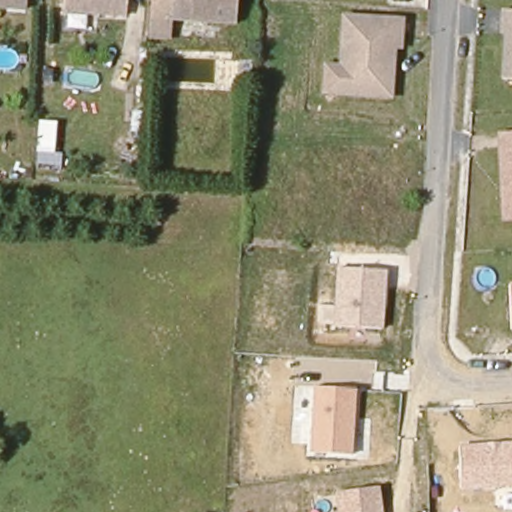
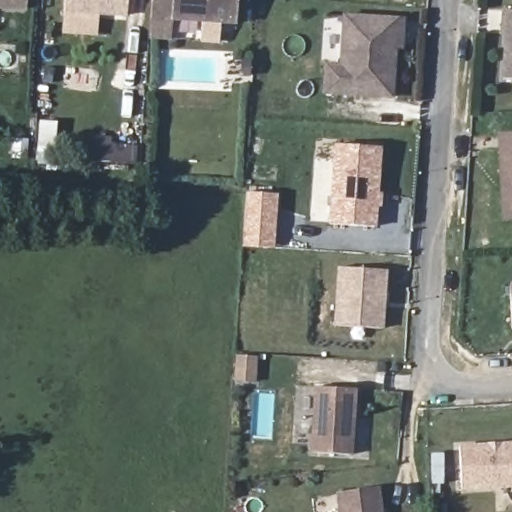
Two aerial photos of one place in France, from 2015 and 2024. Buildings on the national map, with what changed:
unchanged [(0,3),(0,0),(25,0),(25,5),(0,3)]
unchanged [(61,8),(62,0),(125,0),(124,14),(61,8)]
unchanged [(170,17),(170,35),(147,35),(149,0),(234,0),(234,19),(170,17)]
unchanged [(505,29),(501,28),(502,22),(503,5),(512,6),(512,75),(503,75),(505,29)]
unchanged [(322,89),(324,61),(339,61),(341,11),(400,15),(399,31),(398,42),(392,42),(390,92),(322,89)]
unchanged [(512,218),(507,219),(502,133),(512,132),(512,218)]
new [(377,227),(328,224),(333,144),(383,147),(377,227)]
new [(246,192),(278,195),(275,249),(243,246),(246,192)]
unchanged [(383,329),(336,327),(340,266),(387,269),(383,329)]
unchanged [(509,283),(512,283),(512,330),(511,330),(509,283)]
unchanged [(356,390),(351,455),(308,453),(312,387),(356,390)]
unchanged [(459,443),(512,441),(512,486),(461,489),(459,443)]
unchanged [(384,512),(340,512),(337,492),(380,486),(384,512)]

